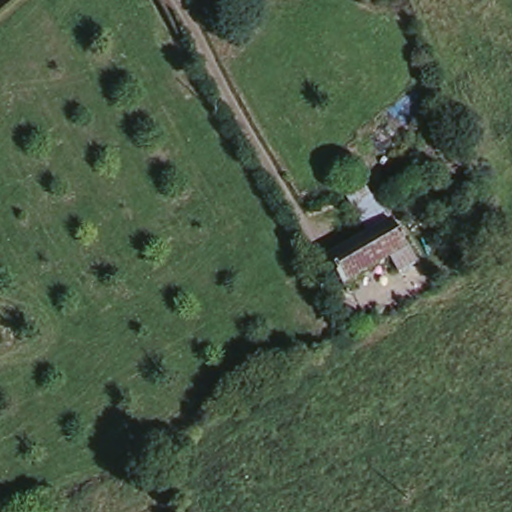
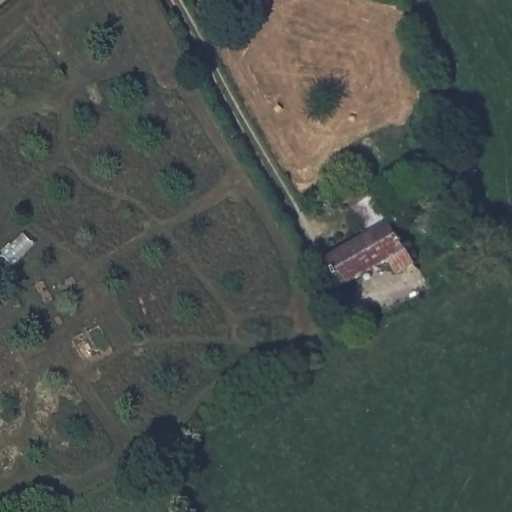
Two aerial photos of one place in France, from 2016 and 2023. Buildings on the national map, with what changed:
unchanged [(392,222),(415,263),(395,273),(387,259),(341,282),(326,255),(392,222)]

